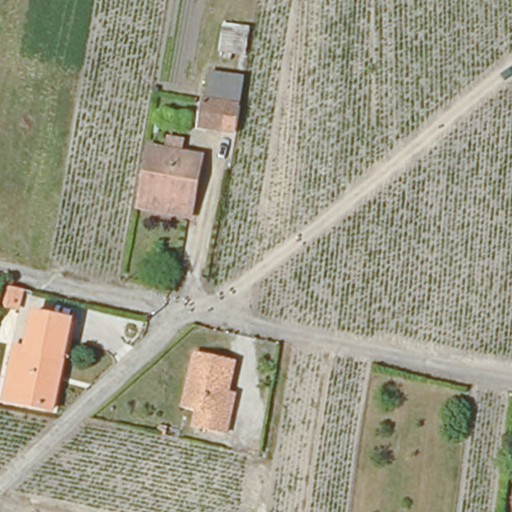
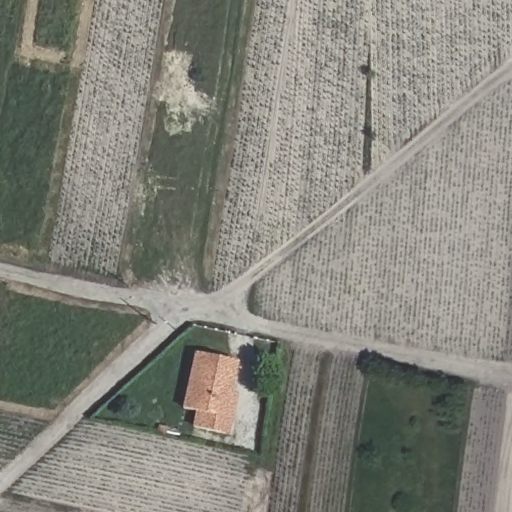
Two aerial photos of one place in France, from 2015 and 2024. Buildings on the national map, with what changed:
demolished [(206,72),(244,79),(234,137),(198,134),(206,72)]
demolished [(149,141),(169,145),(171,131),(186,134),(184,147),(206,151),(194,214),(138,205),(149,141)]
demolished [(69,321),(51,410),(2,401),(12,347),(24,350),(33,314),(69,321)]
unchanged [(236,422),(234,436),(202,429),(204,415),(191,412),(203,357),(240,363),(233,396),(242,397),(236,422)]

